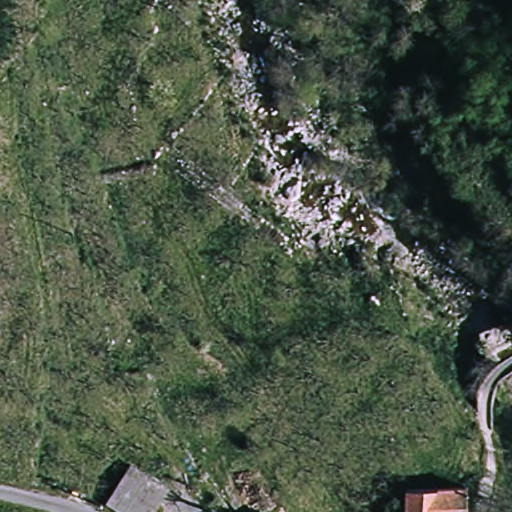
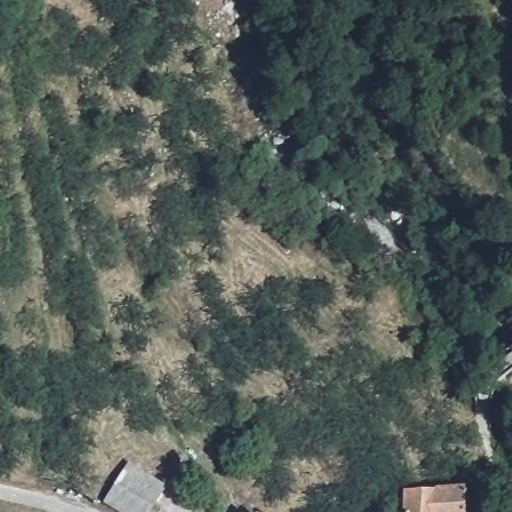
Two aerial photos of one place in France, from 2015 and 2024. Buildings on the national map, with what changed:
unchanged [(109,501),(129,461),(170,482),(155,512),(130,512),(109,501)]
unchanged [(402,487),(462,485),(462,512),(403,512),(402,487)]

